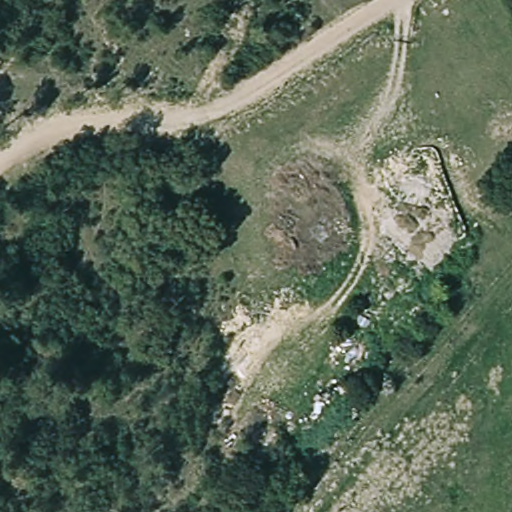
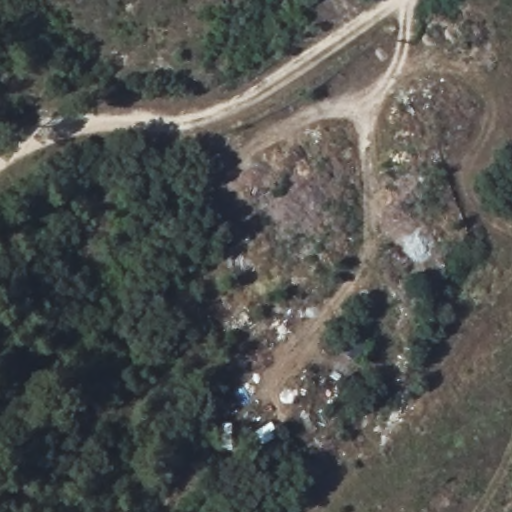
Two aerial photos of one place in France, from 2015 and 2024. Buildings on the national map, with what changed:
[]

